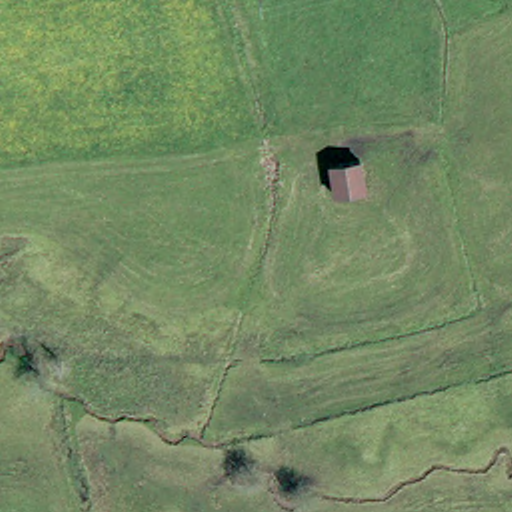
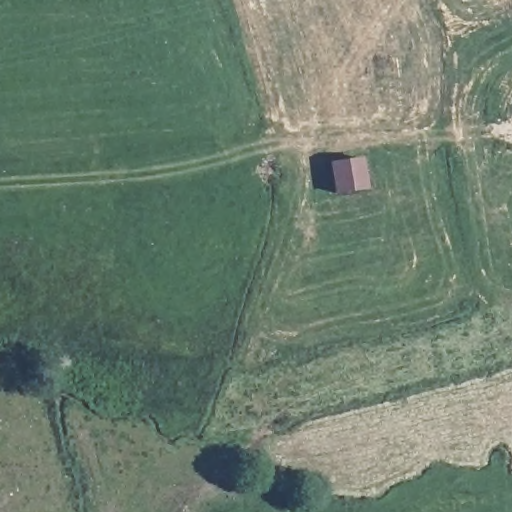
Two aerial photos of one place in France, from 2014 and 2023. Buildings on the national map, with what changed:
unchanged [(357,150),(363,183),(334,189),(326,156),(357,150)]

